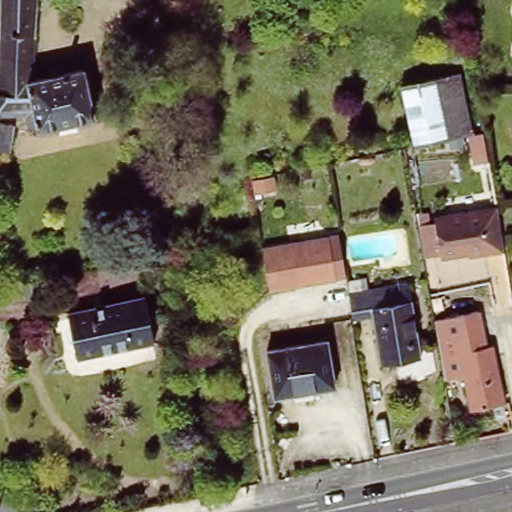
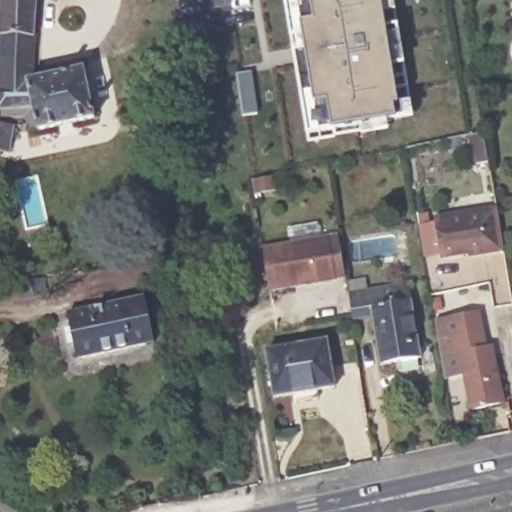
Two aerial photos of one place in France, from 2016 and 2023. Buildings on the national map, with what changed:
unchanged [(39,0),(34,79),(85,68),(95,116),(40,129),(35,107),(0,113),(0,59),(3,0),(39,0)]
new [(401,118),(395,119),(387,120),(389,130),(361,134),(334,137),(309,141),(306,133),(304,125),(292,50),(297,50),(294,36),(290,36),(284,0),(394,0),(414,116),(401,118)]
unchanged [(9,154),(0,152),(0,126),(13,128),(9,154)]
unchanged [(436,215),(498,205),(503,230),(505,246),(469,252),(469,250),(442,254),(436,215)]
unchanged [(339,234),(344,275),(269,287),(264,245),(339,234)]
unchanged [(353,313),(348,281),(366,278),(368,288),(393,283),(396,300),(413,297),(423,355),(381,362),(374,316),(354,319),(353,313)]
unchanged [(149,341),(73,356),(64,310),(141,296),(149,341)]
unchanged [(485,345),(494,343),(506,400),(473,407),(461,352),(455,353),(449,320),(479,315),(485,345)]
unchanged [(333,383),(271,395),(264,348),(324,338),(333,383)]

